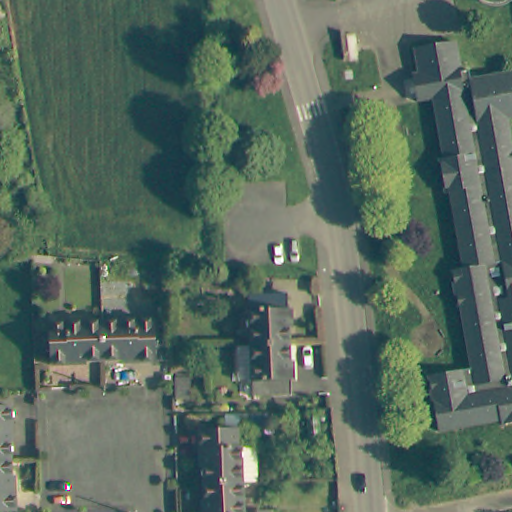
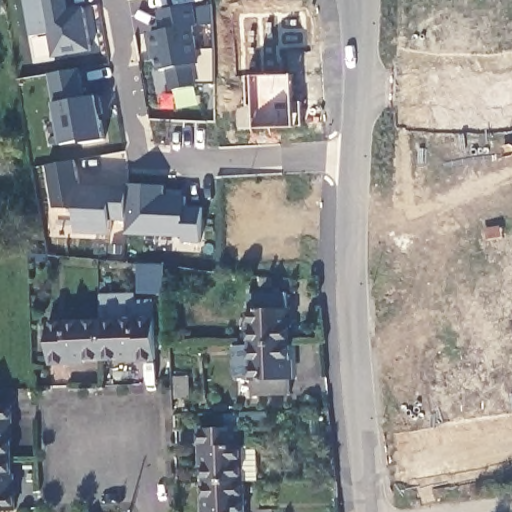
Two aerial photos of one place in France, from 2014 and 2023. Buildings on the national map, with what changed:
new [(55,59),(51,35),(34,37),(27,0),(70,0),(72,9),(85,7),(93,52),(55,59)]
demolished [(498,11),(492,10),(484,6),(479,0),(512,0),(512,6),(505,9),(498,11)]
new [(200,86),(174,90),(171,69),(164,71),(155,32),(165,31),(161,11),(197,4),(198,7),(214,5),(215,26),(216,85),(200,86)]
demolished [(417,97),(407,99),(403,77),(406,77),(413,76),(412,72),(421,71),(417,49),(456,41),(456,42),(461,70),(471,68),(473,79),(506,72),(512,72),(512,115),(507,116),(510,129),(505,131),(442,144),(439,126),(434,99),(418,102),(417,97)]
new [(107,141),(64,145),(57,103),(50,74),(82,69),(88,98),(99,97),(107,141)]
demolished [(512,275),(480,281),(461,184),(445,187),(440,158),(445,157),(442,144),(505,131),(510,129),(512,143),(512,275)]
new [(185,236),(129,235),(129,221),(112,220),(112,234),(80,232),(80,209),(57,209),(50,165),(79,160),(82,186),(130,188),(130,184),(166,186),(165,196),(187,197),(186,206),(202,207),(201,242),(185,242),(185,236)]
demolished [(496,372),(505,424),(502,425),(501,420),(483,422),(466,426),(462,400),(458,372),(472,369),(462,308),(460,309),(454,272),(453,270),(465,267),(450,192),(446,192),(445,187),(461,184),(480,281),(496,372)]
demolished [(480,281),(512,275),(512,368),(496,372),(480,281)]
unchanged [(255,293),(292,292),(293,341),(256,342),(255,293)]
unchanged [(70,356),(70,357),(50,357),(51,317),(102,317),(104,356),(70,356)]
unchanged [(155,318),(155,359),(137,358),(137,356),(104,356),(102,317),(155,318)]
unchanged [(293,341),(294,391),(258,392),(256,342),(293,341)]
demolished [(496,372),(512,368),(512,423),(505,424),(496,372)]
demolished [(462,400),(466,426),(440,431),(432,376),(458,372),(462,400)]
unchanged [(184,382),(185,405),(171,405),(170,382),(184,382)]
unchanged [(11,405),(12,424),(9,424),(10,458),(0,459),(0,405),(11,405)]
unchanged [(264,421),(265,433),(244,434),(244,422),(264,421)]
unchanged [(205,455),(202,456),(202,436),(241,435),(242,488),(206,490),(205,455)]
unchanged [(10,458),(10,492),(14,492),(14,510),(0,510),(0,459),(10,458)]
unchanged [(243,512),(207,512),(206,490),(242,488),(243,512)]

